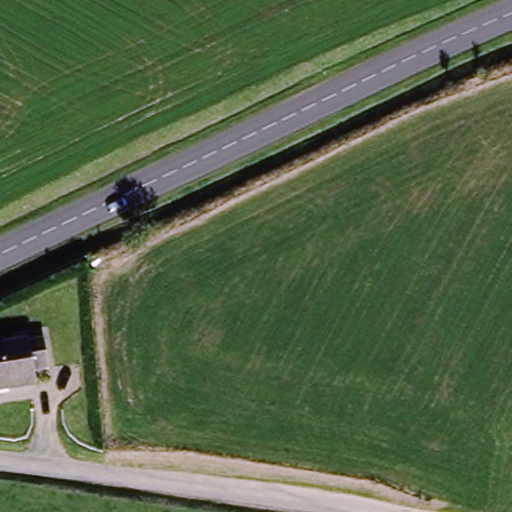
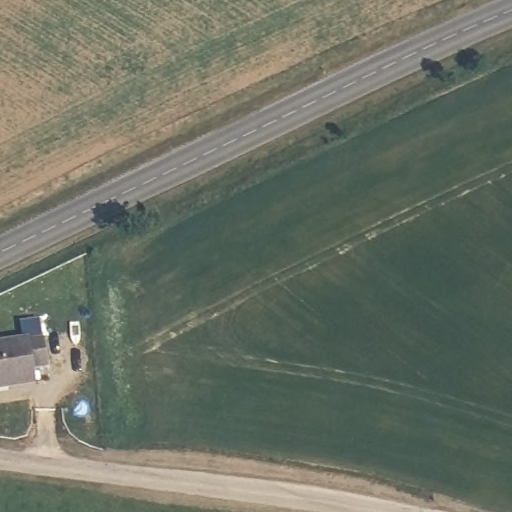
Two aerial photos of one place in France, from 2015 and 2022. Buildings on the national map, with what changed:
unchanged [(0,352),(21,351),(22,393),(0,394),(0,352)]

